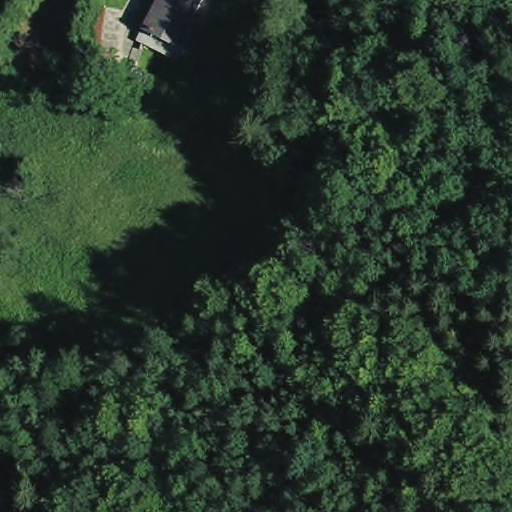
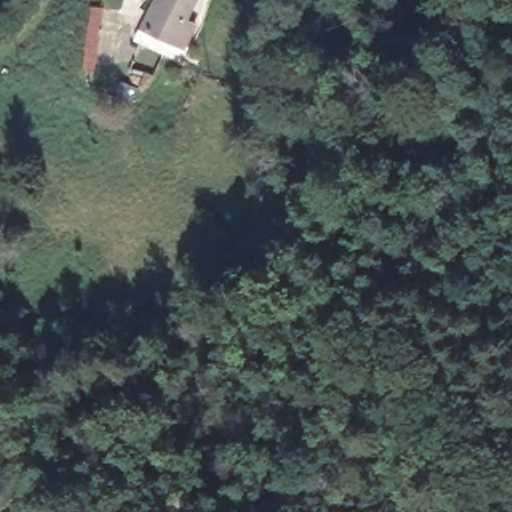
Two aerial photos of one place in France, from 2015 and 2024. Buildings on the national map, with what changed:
unchanged [(195,29),(183,53),(146,34),(163,0),(200,0),(187,25),(195,29)]

